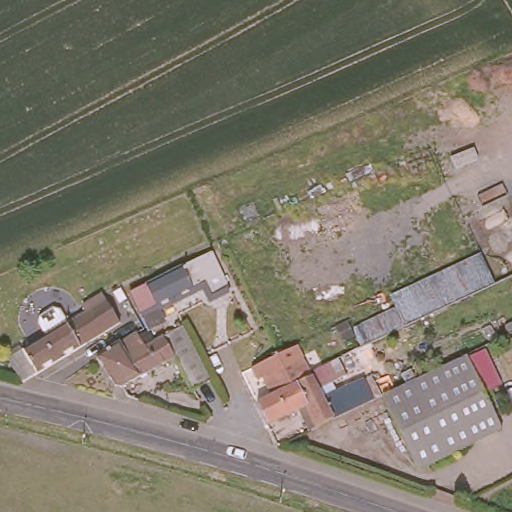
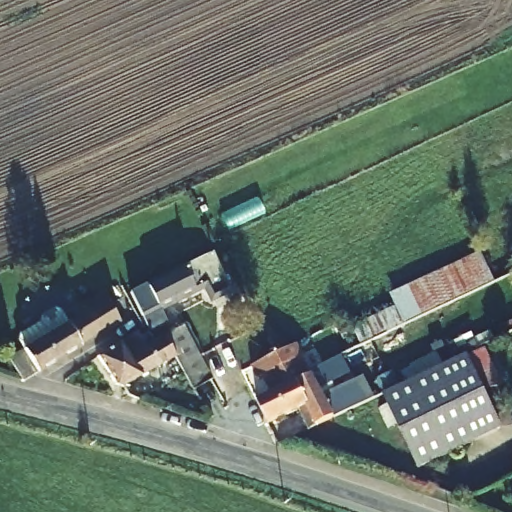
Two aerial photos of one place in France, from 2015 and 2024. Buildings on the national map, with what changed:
unchanged [(133,295),(210,252),(230,289),(212,297),(205,286),(145,318),(133,295)]
unchanged [(386,312),(380,301),(480,252),(493,286),(366,347),(355,321),(386,312)]
unchanged [(7,358),(79,316),(77,314),(126,291),(142,322),(131,328),(127,321),(105,334),(25,380),(7,358)]
unchanged [(135,335),(142,348),(154,341),(178,326),(190,344),(170,356),(122,383),(113,382),(97,359),(135,335)]
unchanged [(190,344),(218,388),(201,398),(170,356),(190,344)]
unchanged [(489,344),(505,382),(486,390),(500,425),(419,461),(385,393),(429,372),(489,344)]
unchanged [(300,346),(312,374),(273,392),(263,374),(255,377),(251,369),(300,346)]
unchanged [(301,409),(270,424),(258,429),(246,404),(264,396),(255,377),(263,374),(273,392),(312,374),(323,398),(366,378),(378,401),(311,433),(310,428),(278,443),(269,424),(301,409)]

